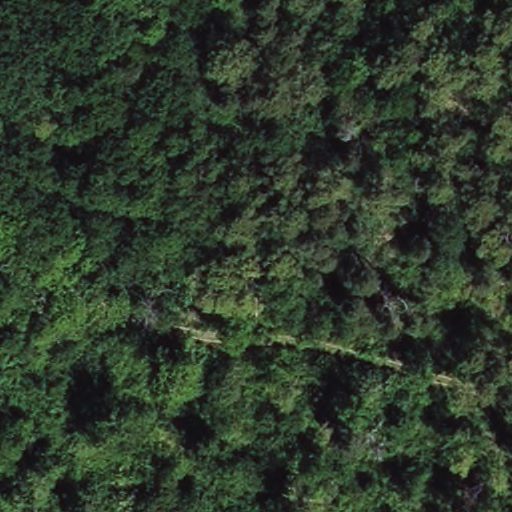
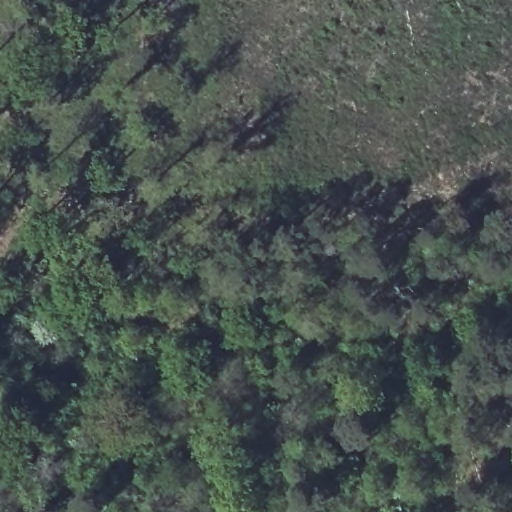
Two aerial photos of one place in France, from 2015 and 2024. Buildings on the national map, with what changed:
[]

